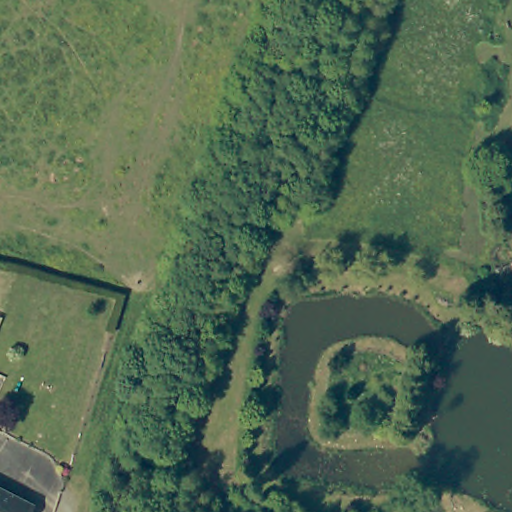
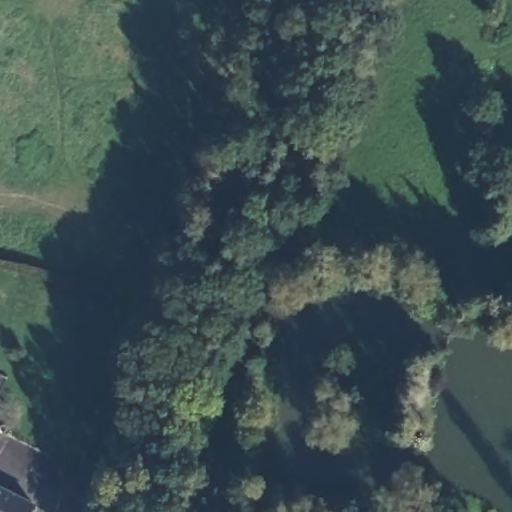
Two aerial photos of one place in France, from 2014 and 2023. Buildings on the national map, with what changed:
unchanged [(35,507),(32,512),(0,512),(0,489),(35,507)]

